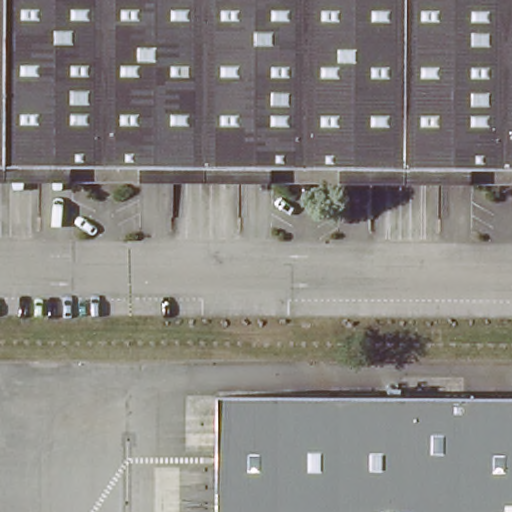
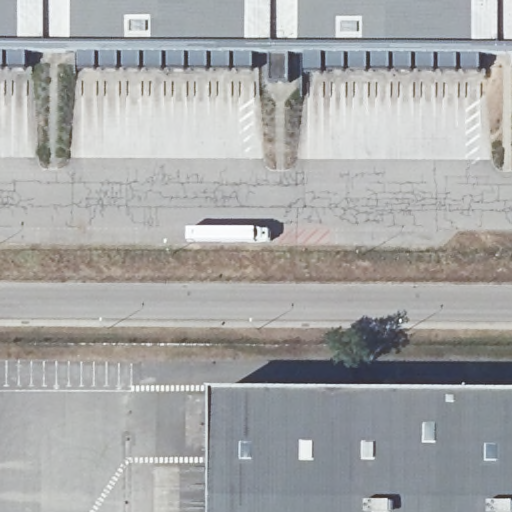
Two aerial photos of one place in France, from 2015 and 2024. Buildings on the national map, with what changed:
new [(505,52),(482,51),(482,71),(325,70),(325,73),(309,74),(309,50),(290,51),(291,82),(271,83),(272,69),(83,67),(83,52),(32,50),(32,70),(0,70),(0,0),(512,0),(512,52),(505,52)]
demolished [(0,167),(0,0),(512,0),(512,169),(0,167)]
unchanged [(217,400),(512,401),(512,512),(216,512),(217,400)]

